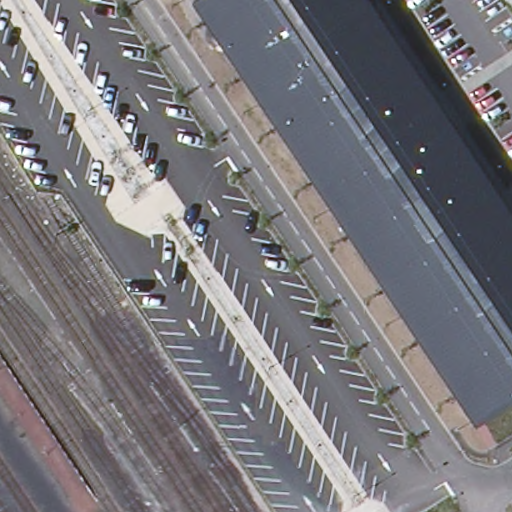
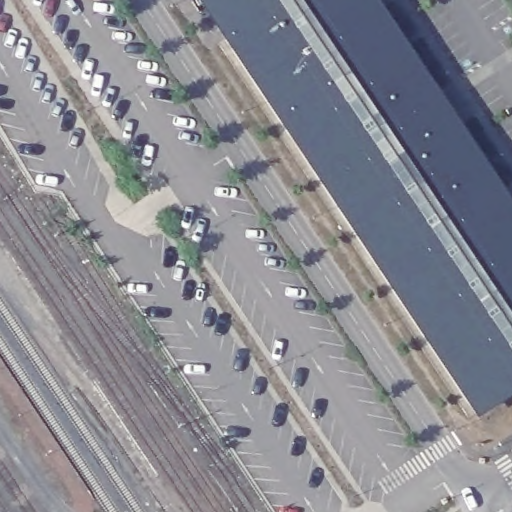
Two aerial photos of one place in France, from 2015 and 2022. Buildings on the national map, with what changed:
unchanged [(337,202),(204,0),(373,0),(453,124),(337,202)]
unchanged [(512,212),(512,393),(479,415),(337,202),(453,124),(512,212)]

